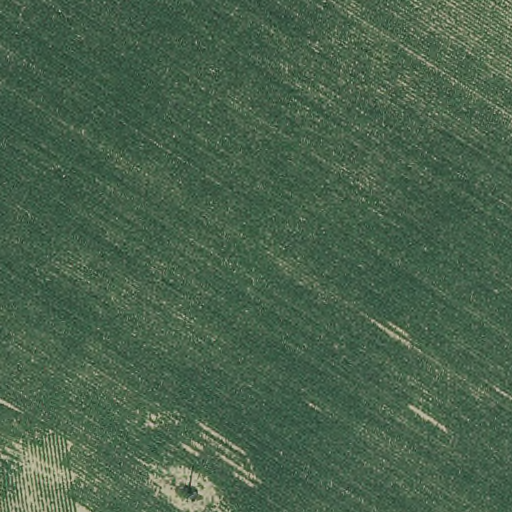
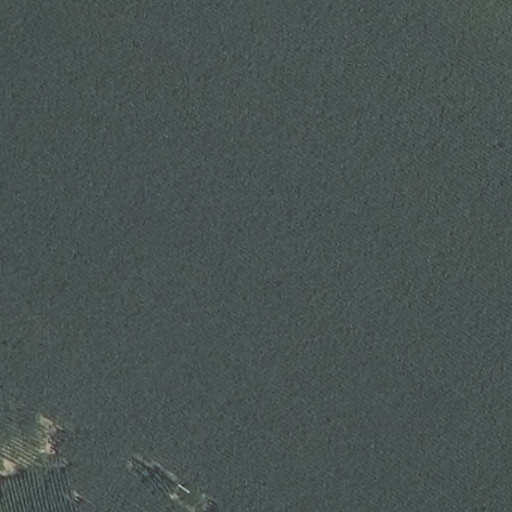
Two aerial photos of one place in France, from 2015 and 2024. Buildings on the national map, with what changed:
[]

